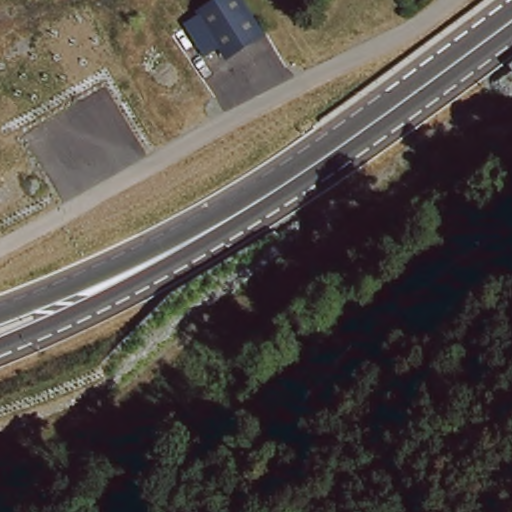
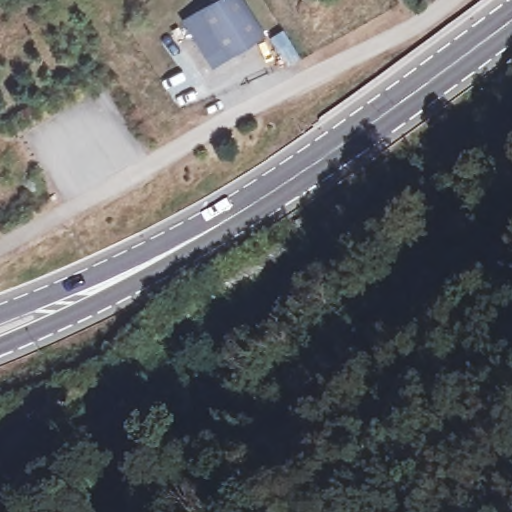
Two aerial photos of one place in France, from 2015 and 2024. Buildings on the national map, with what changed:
unchanged [(224,56),(218,48),(203,54),(187,17),(197,12),(195,8),(209,0),(241,0),(261,34),(224,56)]

